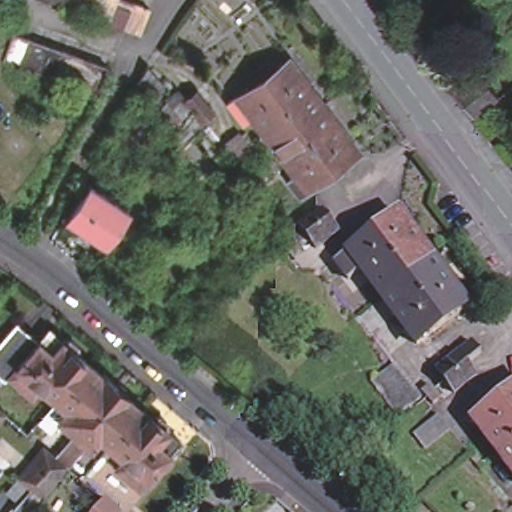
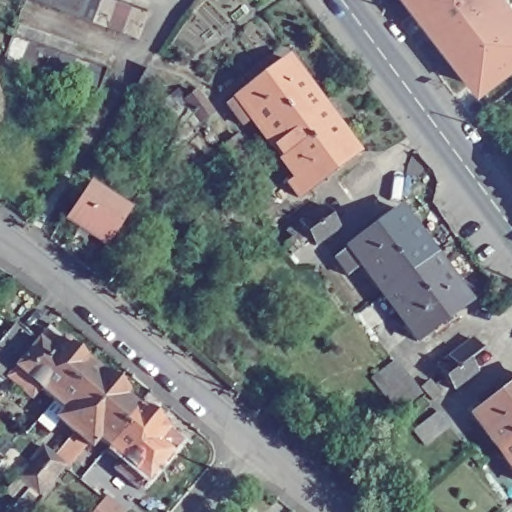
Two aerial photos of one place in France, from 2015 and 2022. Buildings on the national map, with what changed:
unchanged [(133,33),(118,27),(102,22),(87,17),(74,12),(67,11),(59,7),(45,2),(37,0),(133,0),(145,4),(133,33)]
new [(483,90),(414,0),(512,0),(512,67),(483,90)]
unchanged [(34,73),(30,72),(13,67),(0,63),(0,52),(5,34),(20,39),(37,44),(51,47),(67,52),(83,57),(98,62),(90,90),(75,86),(60,81),(43,76),(34,73)]
unchanged [(285,54),(320,100),(295,119),(260,73),(263,71),(285,54)]
unchanged [(258,75),(260,73),(295,119),(270,138),(251,112),(239,121),(225,100),(258,75)]
demolished [(465,110),(455,97),(483,77),(492,89),(502,102),(475,122),(465,110)]
unchanged [(200,118),(188,127),(180,116),(172,105),(183,96),(196,87),(205,97),(212,109),(200,118)]
unchanged [(320,100),(355,147),(330,166),(295,119),(320,100)]
unchanged [(295,119),(330,166),(308,182),(305,185),(270,138),(295,119)]
unchanged [(101,244),(63,219),(87,183),(125,209),(101,244)]
unchanged [(295,249),(291,251),(288,246),(285,242),(288,239),(290,237),(285,231),(308,214),(321,205),(329,216),(337,227),(325,235),(315,243),(307,235),(297,242),(300,245),(295,249)]
unchanged [(405,273),(371,227),(397,209),(431,254),(405,273)]
unchanged [(380,292),(359,264),(345,273),(332,256),(345,247),(371,227),(405,273),(380,292)]
unchanged [(441,320),(405,273),(431,254),(467,301),(441,320)]
unchanged [(298,287),(317,272),(320,272),(326,272),(333,282),(327,286),(308,302),(298,287)]
unchanged [(415,340),(380,292),(405,273),(441,320),(415,340)]
unchanged [(1,380),(0,379),(0,336),(14,320),(35,339),(5,376),(1,380)]
unchanged [(51,402),(50,402),(36,389),(30,398),(5,376),(35,339),(45,328),(57,339),(63,337),(74,346),(75,355),(85,364),(86,365),(51,402)]
unchanged [(435,366),(446,357),(471,338),(478,349),(465,359),(475,372),(463,381),(452,388),(442,376),(435,366)]
unchanged [(395,362),(402,371),(422,397),(397,416),(370,382),(395,362)]
unchanged [(69,433),(52,418),(60,410),(51,402),(86,365),(96,374),(98,372),(112,384),(69,433)]
unchanged [(440,399),(435,402),(430,396),(425,391),(430,387),(433,383),(438,389),(443,396),(440,399)]
unchanged [(496,396),(512,383),(512,416),(496,396)]
unchanged [(100,445),(92,438),(85,446),(69,433),(112,384),(122,392),(120,395),(133,407),(100,445)]
unchanged [(497,447),(471,415),(496,396),(512,416),(512,436),(497,447)]
unchanged [(142,415),(149,413),(160,422),(160,430),(172,441),(130,487),(107,467),(114,457),(102,447),(100,445),(133,407),(142,415)]
unchanged [(445,425),(421,445),(410,432),(434,412),(443,423),(445,425)]
unchanged [(0,420),(0,418),(1,419),(0,420)]
unchanged [(497,447),(512,436),(512,466),(497,447)]
unchanged [(12,481),(38,452),(48,461),(60,471),(35,500),(36,501),(26,512),(12,512),(7,507),(15,500),(3,491),(12,481)]
unchanged [(96,504),(106,512),(90,512),(96,504)]

